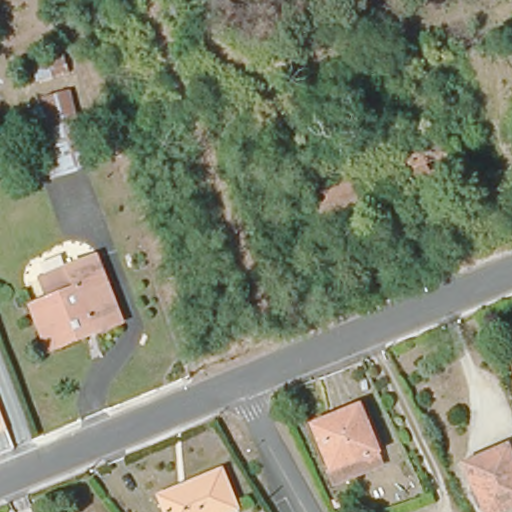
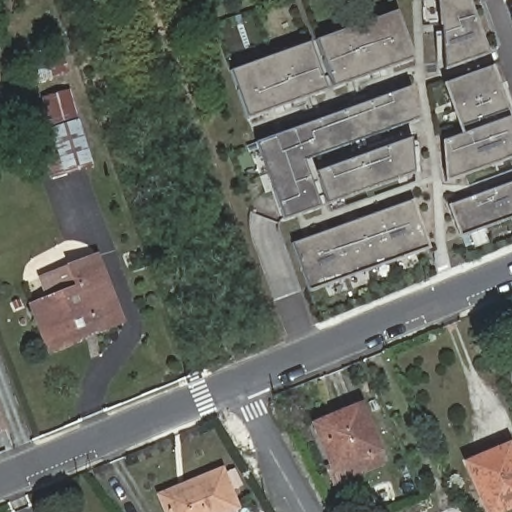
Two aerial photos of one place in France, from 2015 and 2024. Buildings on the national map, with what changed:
new [(444,71),(439,0),(469,0),(489,55),(444,71)]
new [(333,88),(317,39),(397,12),(414,59),(333,88)]
new [(247,120),(230,71),(309,43),(326,91),(247,120)]
unchanged [(60,53),(65,74),(35,80),(29,60),(60,53)]
new [(512,158),(445,182),(442,142),(462,134),(443,83),(492,66),(512,122),(512,158)]
unchanged [(92,160),(48,177),(30,131),(50,122),(39,96),(62,86),(92,160)]
new [(285,221),(258,143),(411,87),(422,120),(305,160),(321,208),(285,221)]
new [(317,172),(410,139),(413,174),(329,205),(317,172)]
demolished [(456,145),(464,164),(412,186),(404,165),(456,145)]
new [(448,205),(512,183),(512,220),(460,238),(448,205)]
demolished [(354,186),(363,207),(325,222),(316,201),(354,186)]
new [(310,293),(293,243),(413,200),(430,249),(310,293)]
unchanged [(98,251),(126,323),(123,324),(97,258),(72,268),(79,289),(33,306),(46,338),(40,340),(28,303),(48,295),(40,277),(98,251)]
unchanged [(47,341),(33,306),(79,289),(72,268),(97,258),(123,324),(99,334),(52,352),(47,341)]
unchanged [(334,470),(323,442),(316,426),(362,407),(368,422),(381,452),(334,470)]
unchanged [(5,428),(0,431),(0,414),(5,428)]
unchanged [(510,447),(512,451),(512,508),(502,512),(488,512),(468,464),(510,447)]
unchanged [(158,497),(220,473),(235,510),(230,512),(165,512),(158,497)]

